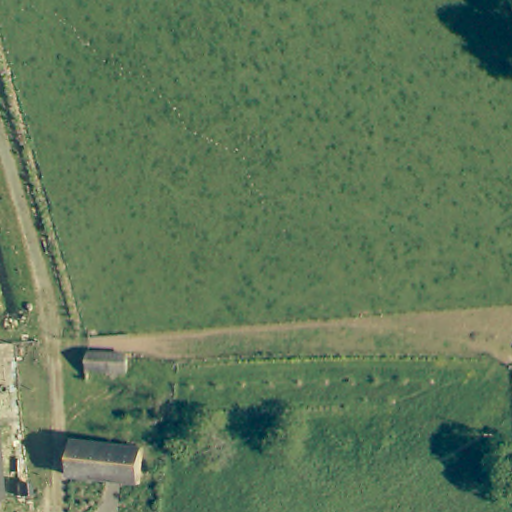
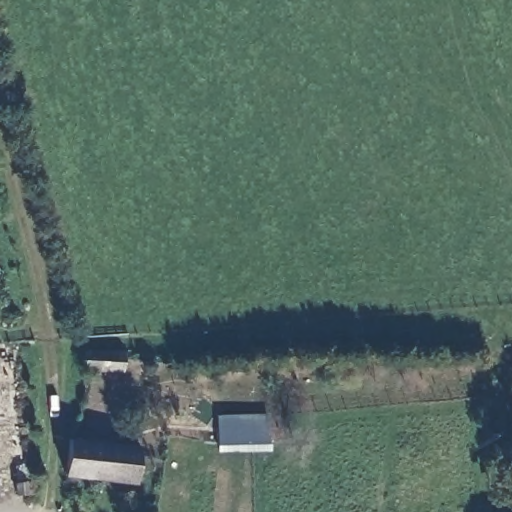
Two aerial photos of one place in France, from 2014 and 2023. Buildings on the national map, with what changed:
unchanged [(122,367),(84,369),(84,354),(122,354),(122,367)]
new [(267,443),(218,444),(217,415),(266,414),(267,443)]
unchanged [(69,475),(61,474),(65,437),(132,444),(129,477),(69,475)]

